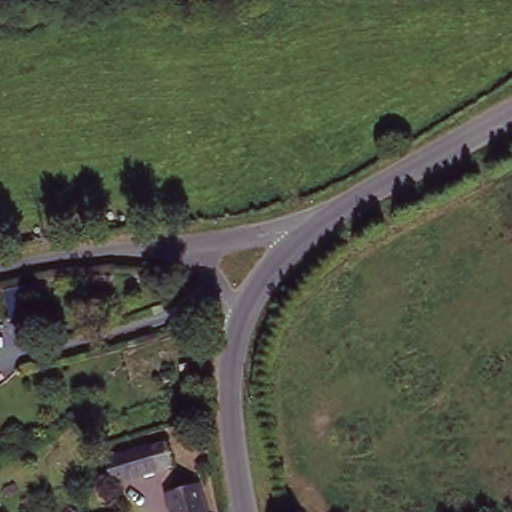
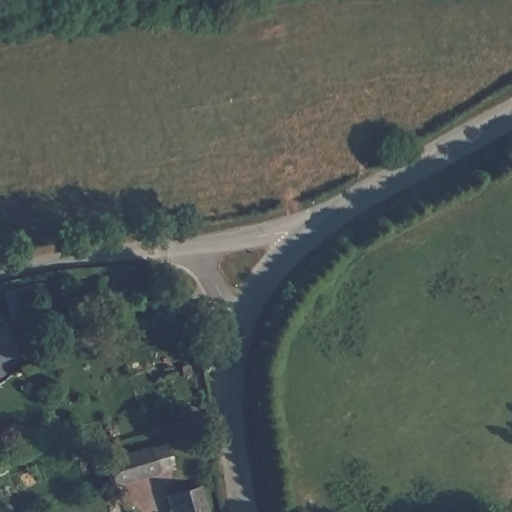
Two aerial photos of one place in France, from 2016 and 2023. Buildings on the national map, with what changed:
unchanged [(149,445),(165,441),(170,465),(154,468),(110,479),(104,457),(149,445)]
unchanged [(166,494),(196,488),(201,512),(170,512),(166,494)]

